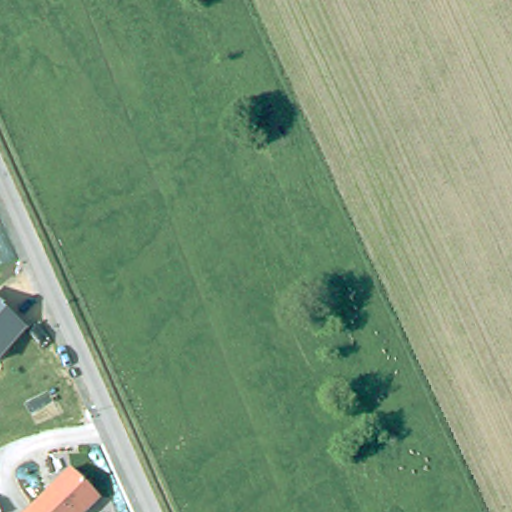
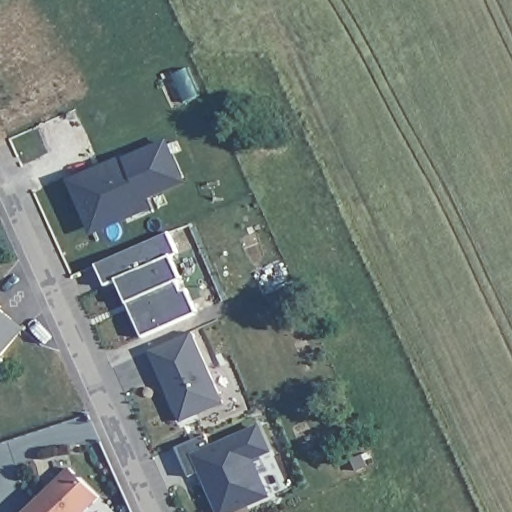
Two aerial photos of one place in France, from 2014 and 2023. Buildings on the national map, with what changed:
new [(151,210),(91,234),(68,177),(124,157),(166,139),(186,184),(148,200),(151,210)]
new [(105,285),(95,264),(166,232),(176,253),(169,256),(179,279),(184,290),(195,312),(141,336),(129,307),(116,280),(105,285)]
unchanged [(25,326),(0,358),(0,303),(25,326)]
new [(149,350),(191,332),(223,404),(181,422),(149,350)]
new [(270,452),(253,459),(271,497),(236,512),(218,512),(201,474),(189,478),(176,448),(205,435),(209,444),(259,423),(270,452)]
unchanged [(99,497),(84,512),(23,512),(22,511),(68,465),(99,497)]

